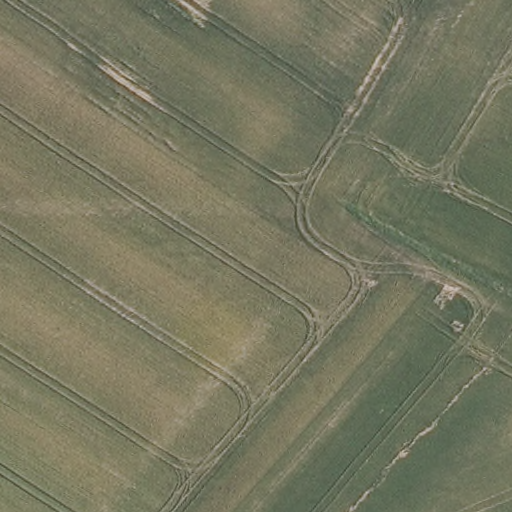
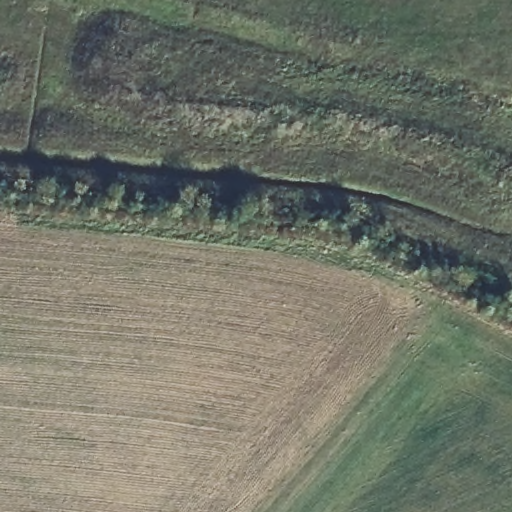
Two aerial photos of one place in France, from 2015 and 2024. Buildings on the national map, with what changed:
[]

